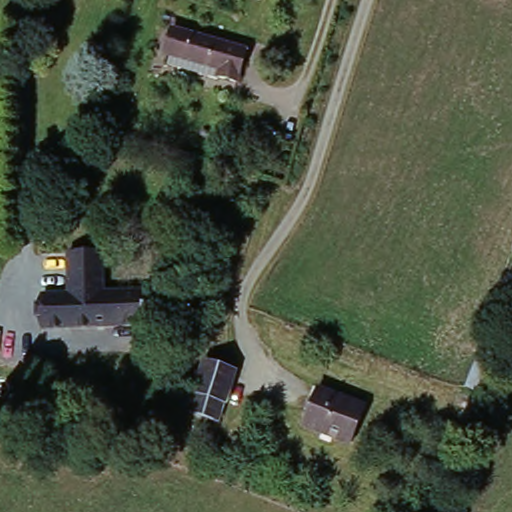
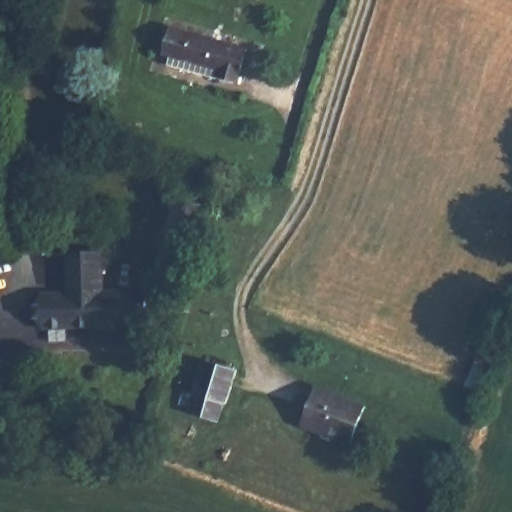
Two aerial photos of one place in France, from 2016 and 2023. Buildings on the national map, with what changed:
unchanged [(249,46),(239,77),(221,72),(220,74),(171,61),(173,51),(167,50),(174,25),(249,46)]
unchanged [(49,290),(77,288),(74,247),(109,245),(109,286),(157,282),(159,317),(80,320),(51,322),(49,290)]
unchanged [(466,387),(480,350),(501,356),(487,392),(466,387)]
unchanged [(190,411),(196,393),(191,392),(202,358),(239,371),(228,404),(224,403),(218,422),(190,411)]
unchanged [(364,410),(349,444),(303,425),(319,390),(364,410)]

